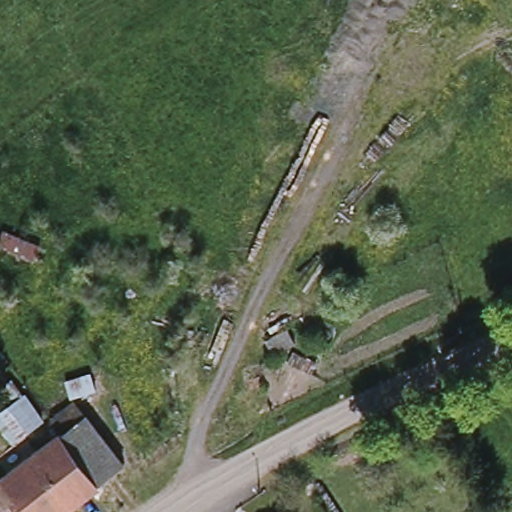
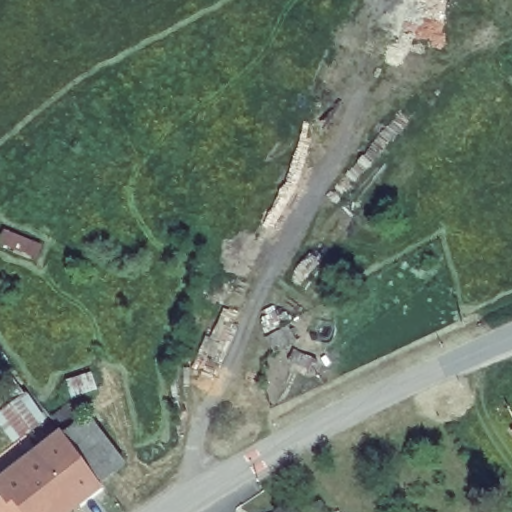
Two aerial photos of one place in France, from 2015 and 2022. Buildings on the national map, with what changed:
unchanged [(287,322),(294,337),(272,348),(265,333),(287,322)]
unchanged [(305,355),(300,365),(286,358),(292,348),(305,355)]
unchanged [(94,388),(69,397),(63,381),(89,373),(94,388)]
unchanged [(27,392),(45,419),(12,444),(0,428),(0,391),(18,379),(27,392)]
unchanged [(132,458),(107,478),(69,427),(92,409),(132,458)]
unchanged [(107,478),(69,508),(30,457),(69,427),(107,478)]
unchanged [(2,477),(30,457),(69,508),(63,512),(0,512),(0,499),(12,490),(2,477)]

